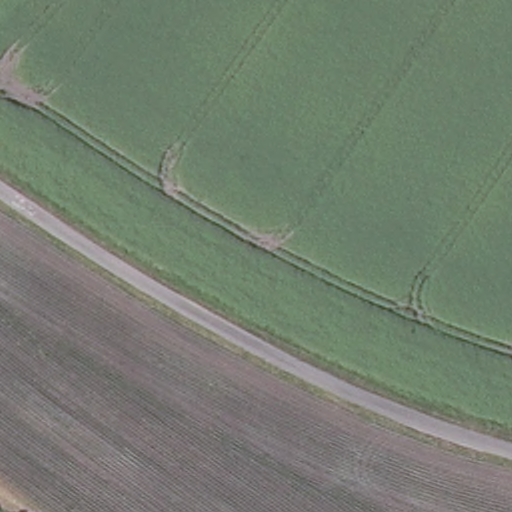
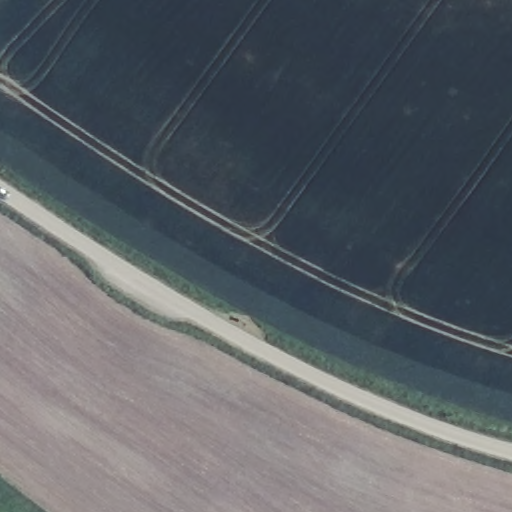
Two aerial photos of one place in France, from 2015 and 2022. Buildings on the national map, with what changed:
[]

